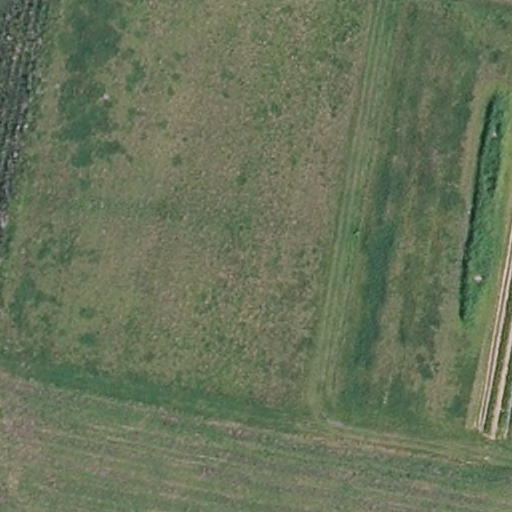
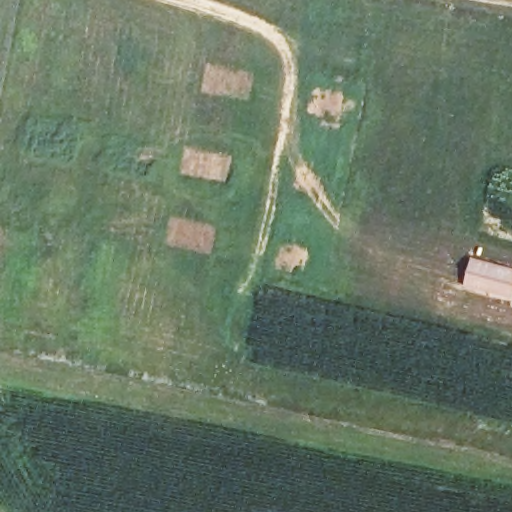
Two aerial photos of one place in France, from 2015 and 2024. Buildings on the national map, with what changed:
new [(512,268),(512,299),(463,285),(471,257),(512,268)]

